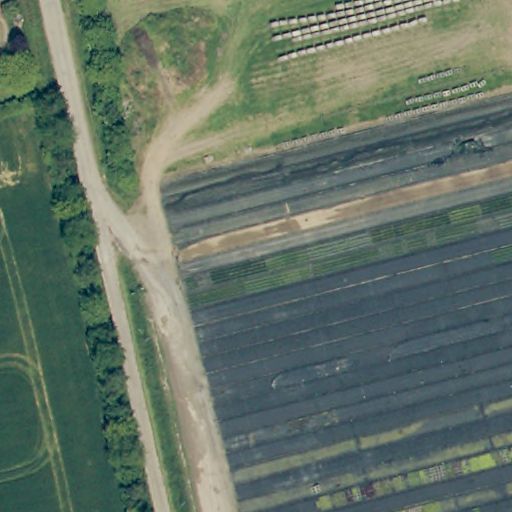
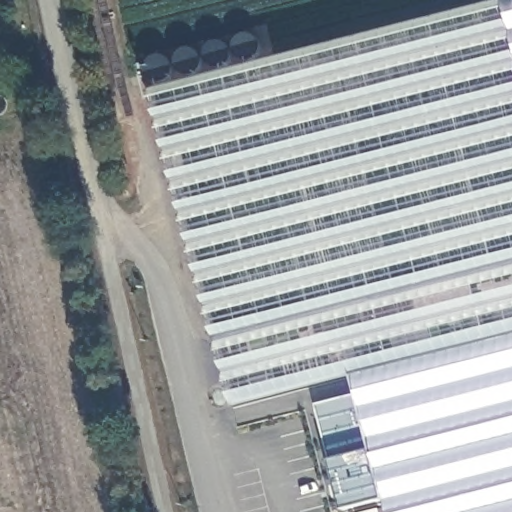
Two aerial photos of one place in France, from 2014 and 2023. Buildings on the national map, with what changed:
new [(266,59),(498,0),(512,0),(512,266),(239,335),(218,341),(151,88),(266,59)]
new [(151,88),(144,63),(258,32),(266,59),(151,88)]
new [(387,500),(361,396),(355,375),(235,403),(218,341),(512,266),(512,512),(390,512),(387,500)]
new [(387,500),(346,510),(333,462),(319,405),(361,396),(387,500)]

